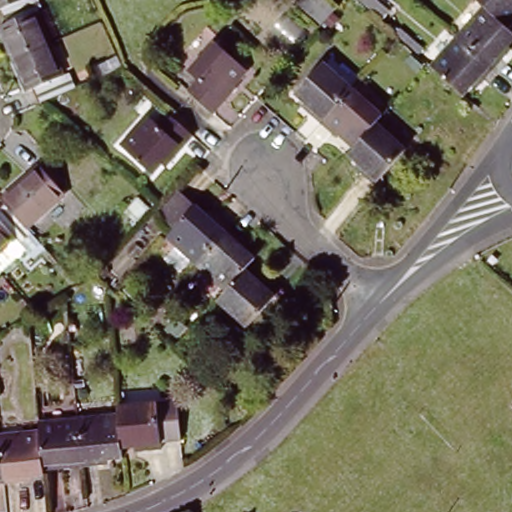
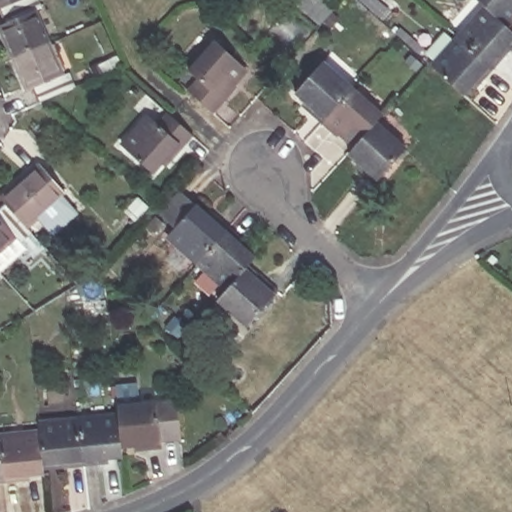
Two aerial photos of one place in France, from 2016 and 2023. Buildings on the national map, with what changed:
unchanged [(23,2),(0,12),(0,0),(23,0),(23,2)]
unchanged [(35,14),(29,15),(43,48),(9,63),(0,42),(0,28),(1,28),(0,26),(0,12),(23,2),(28,0),(29,0),(35,14)]
unchanged [(512,18),(508,15),(497,27),(477,10),(467,0),(512,0),(512,18)]
unchanged [(493,52),(497,56),(485,70),(450,40),(477,10),(497,27),(507,36),(493,52)]
unchanged [(472,86),(467,82),(454,96),(423,69),(450,40),(485,70),(472,86)]
unchanged [(57,80),(75,72),(81,86),(35,106),(28,92),(23,95),(9,63),(43,48),(57,80)]
unchanged [(197,84),(189,76),(215,48),(245,75),(232,89),(236,92),(210,121),(183,98),(197,84)]
unchanged [(299,115),(304,110),(288,96),(317,65),(348,93),(315,130),(299,115)]
unchanged [(335,138),(330,143),(315,130),(348,93),(378,120),(371,127),(350,151),(335,138)]
unchanged [(163,160),(160,157),(145,173),(115,146),(143,115),(150,120),(164,105),(190,129),(163,160)]
unchanged [(371,127),(402,156),(370,191),(355,177),(358,173),(342,160),(350,151),(371,127)]
unchanged [(0,204),(0,199),(36,166),(61,195),(22,229),(2,205),(0,204)]
unchanged [(147,222),(135,210),(147,197),(160,209),(147,222)]
unchanged [(27,234),(15,245),(10,240),(0,249),(0,207),(2,205),(22,229),(27,234)]
unchanged [(164,237),(190,208),(203,220),(208,215),(223,229),(192,263),(164,237)]
unchanged [(192,263),(223,229),(238,242),(235,246),(249,260),(240,269),(222,290),(192,263)]
unchanged [(256,283),(259,279),(275,293),(243,330),(211,302),(222,290),(240,269),(256,283)]
unchanged [(156,448),(157,455),(137,456),(137,451),(116,453),(113,421),(112,412),(172,406),(173,426),(175,446),(156,448)]
unchanged [(97,466),(98,470),(78,472),(73,425),(113,421),(116,453),(117,464),(97,466)]
unchanged [(73,425),(78,472),(58,475),(57,470),(37,472),(35,437),(33,430),(73,425)]
unchanged [(20,480),(20,487),(0,490),(0,441),(35,437),(37,472),(38,479),(20,480)]

